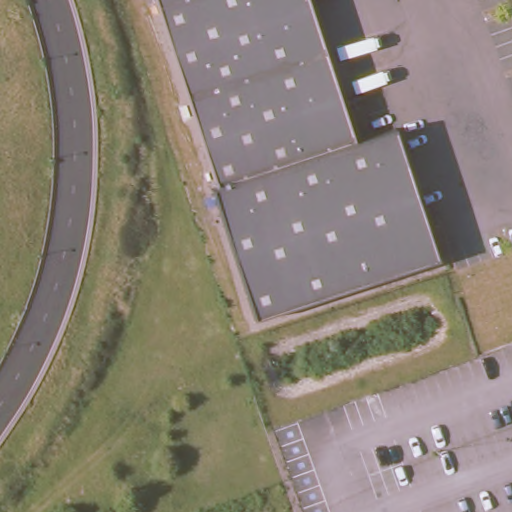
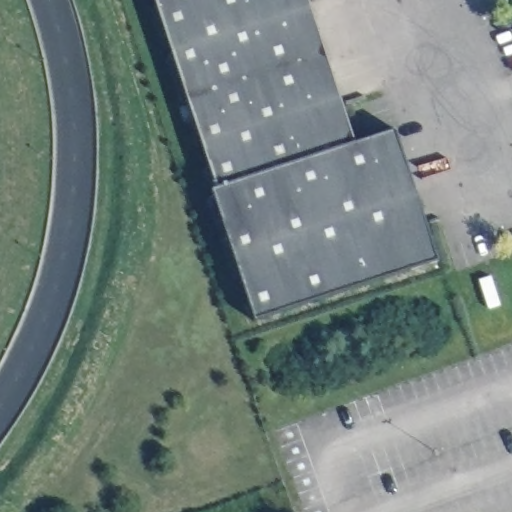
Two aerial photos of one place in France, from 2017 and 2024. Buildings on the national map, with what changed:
unchanged [(393,132),(436,261),(255,321),(210,191),(216,190),(156,0),(305,0),(351,145),(393,132)]

